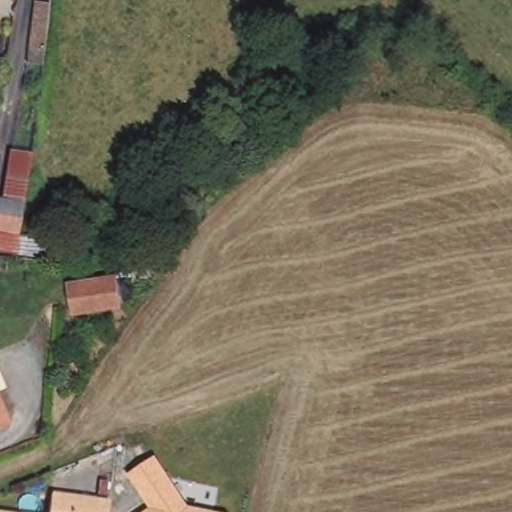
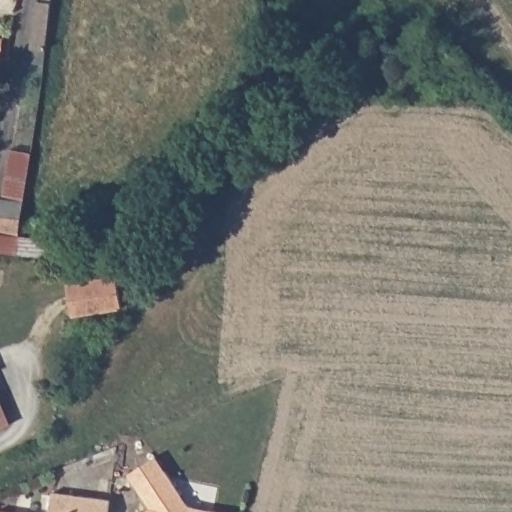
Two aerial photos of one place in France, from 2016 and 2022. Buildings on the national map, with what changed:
unchanged [(44,64),(27,62),(30,47),(36,0),(39,1),(39,0),(52,0),(52,2),(51,6),(45,50),(44,64)]
unchanged [(1,54),(0,54),(0,38),(2,38),(1,54)]
unchanged [(10,149),(32,152),(24,201),(19,235),(10,234),(0,233),(0,199),(2,199),(10,149)]
unchanged [(19,235),(51,239),(49,256),(15,254),(0,252),(0,233),(10,234),(19,235)]
unchanged [(116,275),(121,308),(71,316),(67,283),(116,275)]
unchanged [(0,429),(0,402),(10,424),(0,429)]
unchanged [(119,482),(142,461),(154,474),(183,506),(216,512),(145,512),(130,495),(119,482)]
unchanged [(109,499),(107,512),(49,512),(52,492),(109,499)]
unchanged [(0,512),(0,511),(4,512),(0,512)]

